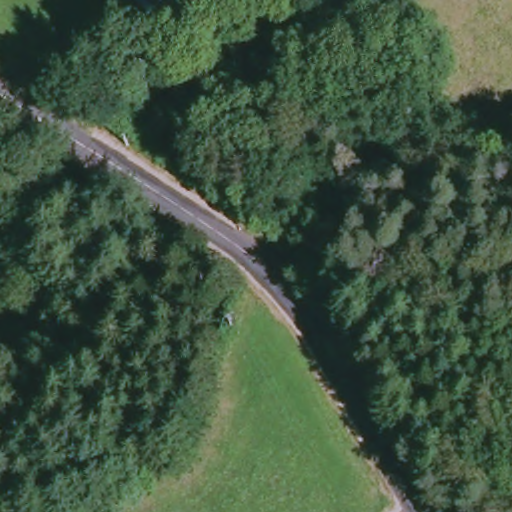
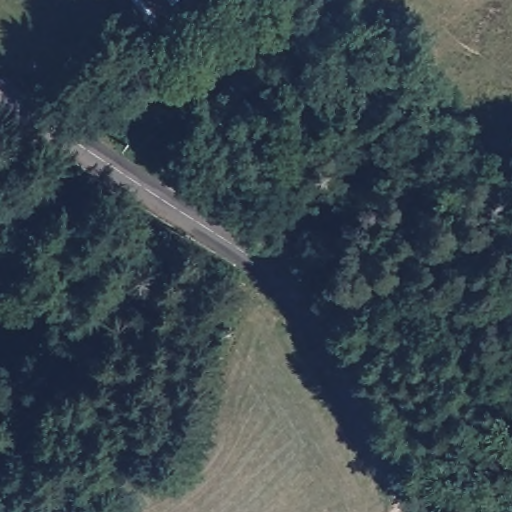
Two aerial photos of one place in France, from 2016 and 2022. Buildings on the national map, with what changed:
unchanged [(137,0),(175,0),(152,20),(137,0)]

